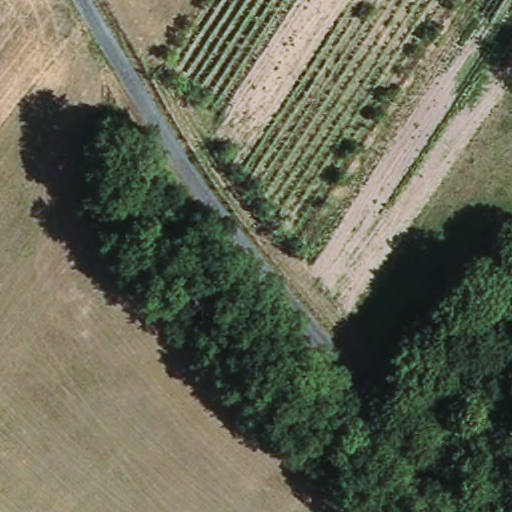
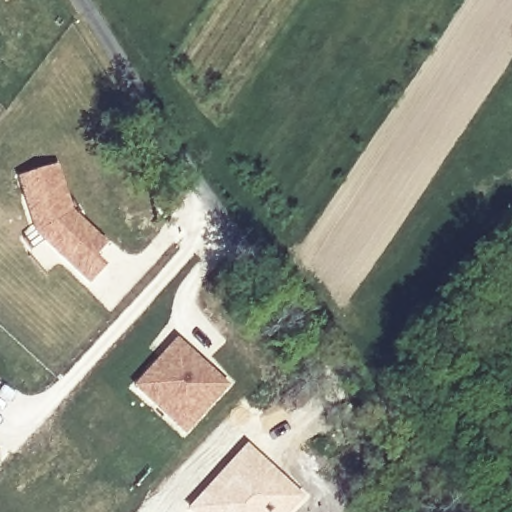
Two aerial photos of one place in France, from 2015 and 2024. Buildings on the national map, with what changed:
new [(35,228),(17,178),(55,167),(68,206),(73,202),(80,212),(74,217),(102,245),(92,258),(103,267),(88,281),(35,228)]
new [(177,341),(227,388),(185,432),(135,387),(177,341)]
new [(303,499),(291,512),(191,512),(186,508),(245,443),(303,499)]

